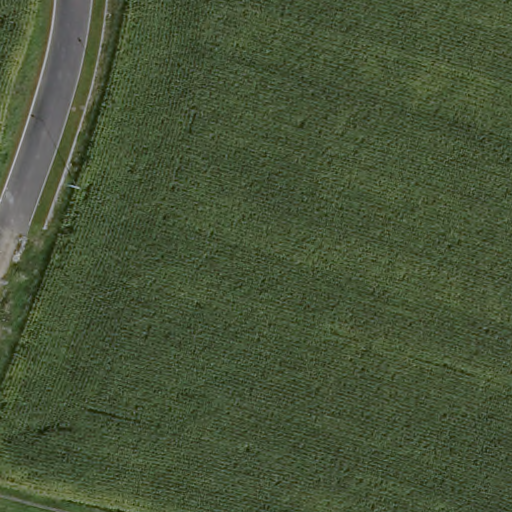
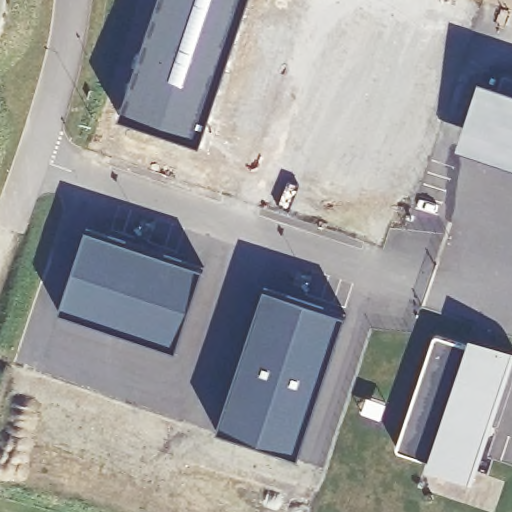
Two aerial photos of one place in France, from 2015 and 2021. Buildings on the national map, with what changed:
new [(512,96),(512,147),(465,131),(480,85),(512,96)]
new [(87,225),(206,265),(178,348),(60,308),(87,225)]
new [(265,285),(348,312),(300,455),(218,427),(265,285)]
new [(437,334),(469,344),(470,347),(470,350),(482,354),(485,344),(512,353),(512,364),(472,482),(471,481),(471,479),(443,469),(446,459),(434,455),(433,457),(430,459),(399,448),(397,445),(434,335),(437,334)]

